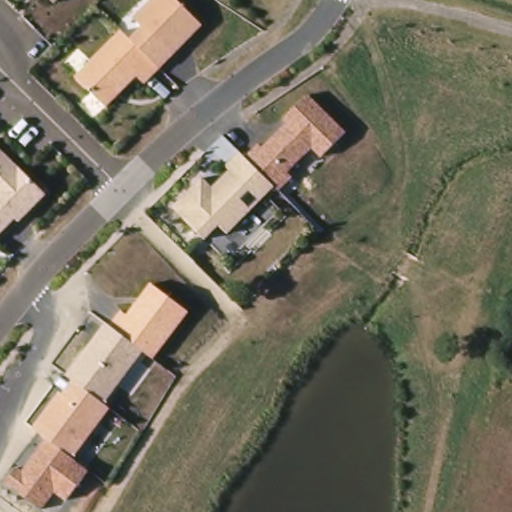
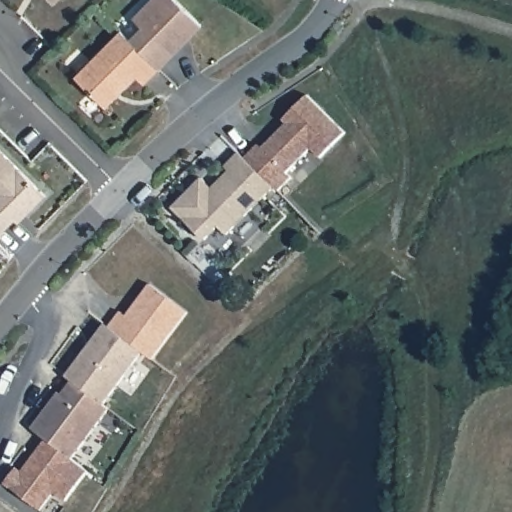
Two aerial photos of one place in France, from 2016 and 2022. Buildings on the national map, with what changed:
unchanged [(51,0),(57,0),(54,3),(51,0)]
unchanged [(136,76),(107,106),(77,77),(119,30),(129,39),(141,25),(134,16),(150,0),(175,0),(201,25),(144,85),(136,76)]
unchanged [(198,180),(209,190),(226,173),(220,166),(236,152),(243,160),(282,127),(279,121),(305,95),(345,135),(319,160),(309,152),(285,172),(290,179),(275,194),(272,190),(224,239),(217,231),(205,242),(170,210),(198,180)]
unchanged [(45,197),(17,226),(12,221),(0,232),(0,154),(45,197)]
unchanged [(43,440),(29,428),(56,391),(62,394),(71,381),(64,376),(104,322),(109,326),(121,310),(126,315),(151,282),(188,312),(152,360),(142,353),(104,403),(111,410),(70,460),(43,440)]
unchanged [(88,472),(65,502),(51,493),(39,510),(3,482),(15,465),(22,470),(43,440),(88,472)]

